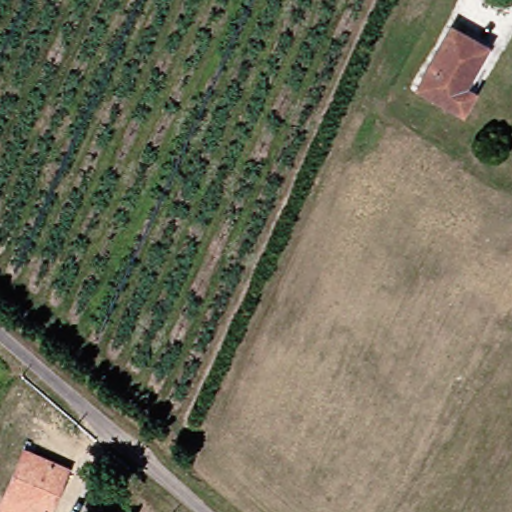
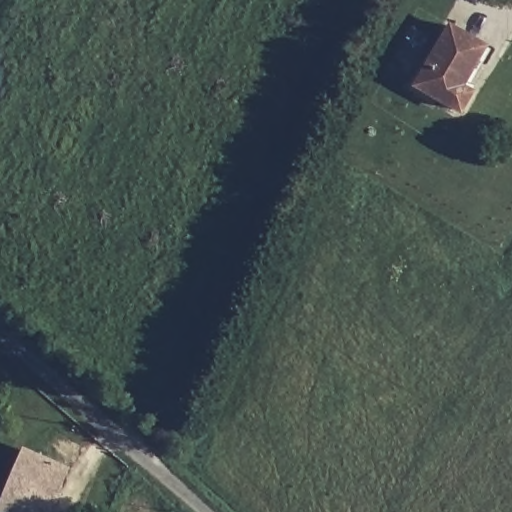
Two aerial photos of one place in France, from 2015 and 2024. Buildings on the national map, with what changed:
unchanged [(478,89),(468,109),(423,86),(441,50),(453,26),(471,35),(490,44),(469,84),(478,89)]
unchanged [(41,509),(40,512),(15,512),(1,505),(26,448),(67,467),(48,512),(41,509)]

